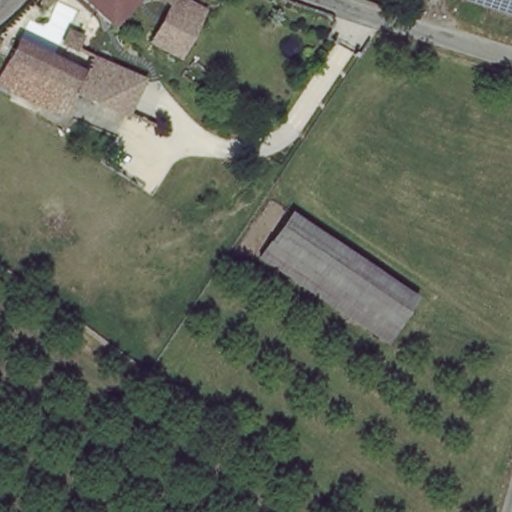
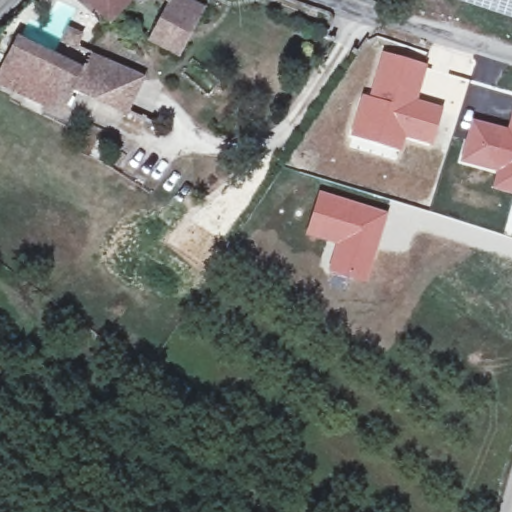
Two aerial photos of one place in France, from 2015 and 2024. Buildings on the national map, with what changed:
unchanged [(37,0),(75,0),(59,18),(37,0)]
unchanged [(114,24),(85,0),(136,0),(114,24)]
unchanged [(205,7),(179,62),(145,42),(164,9),(148,0),(189,0),(205,7)]
unchanged [(459,0),(512,0),(512,18),(459,1),(459,0)]
unchanged [(141,58),(131,88),(104,77),(90,107),(62,94),(0,64),(0,58),(7,47),(43,65),(57,35),(83,48),(89,37),(141,58)]
new [(361,93),(369,96),(381,51),(427,64),(418,99),(443,107),(432,146),(405,138),(400,152),(349,136),(361,93)]
unchanged [(49,116),(38,110),(0,91),(0,64),(62,94),(49,116)]
unchanged [(143,131),(103,113),(90,107),(104,77),(131,88),(155,97),(143,131)]
new [(502,173),(465,163),(475,126),(512,135),(512,180),(500,177),(502,173)]
new [(318,191),(387,212),(366,283),(326,271),(334,245),(304,236),(318,191)]
demolished [(288,213),(415,301),(395,328),(270,241),(288,213)]

